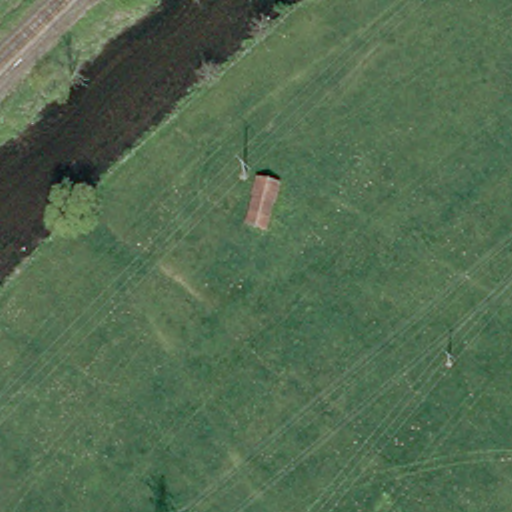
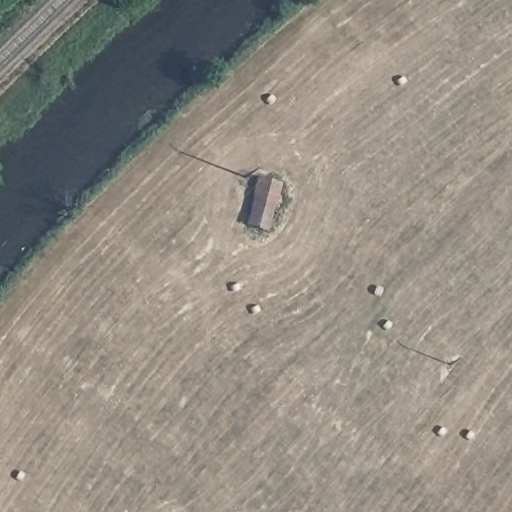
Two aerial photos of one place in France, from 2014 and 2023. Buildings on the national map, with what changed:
unchanged [(244,221),(257,168),(287,180),(269,226),(244,221)]

